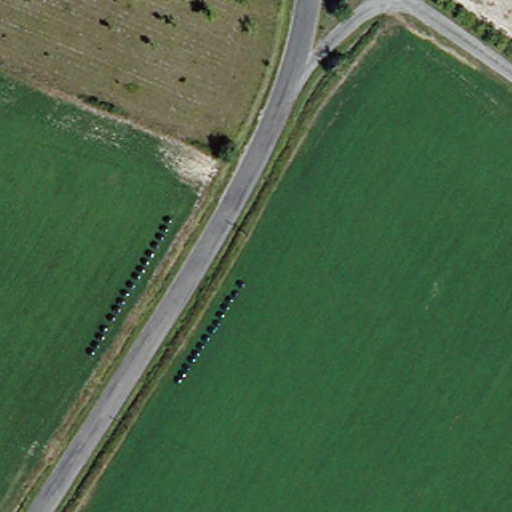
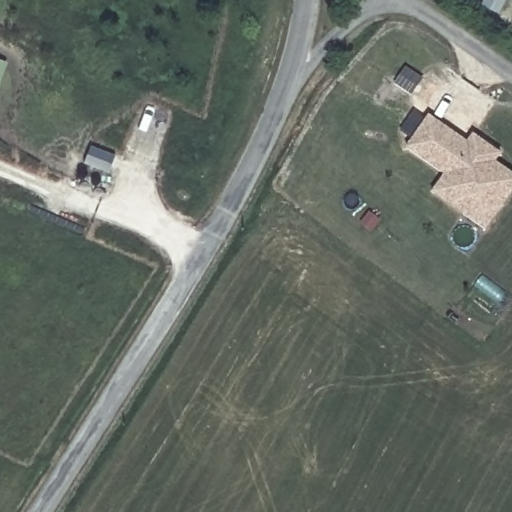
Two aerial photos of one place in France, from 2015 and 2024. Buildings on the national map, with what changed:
new [(0,86),(0,60),(9,63),(0,86)]
new [(468,142),(474,135),(500,154),(494,162),(512,175),(512,196),(487,232),(432,193),(445,176),(407,149),(430,116),(468,142)]

